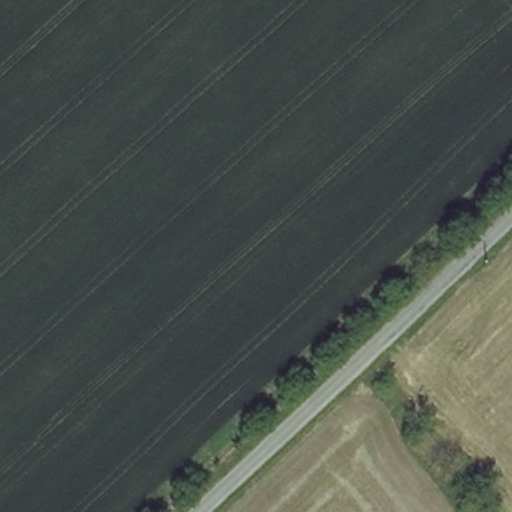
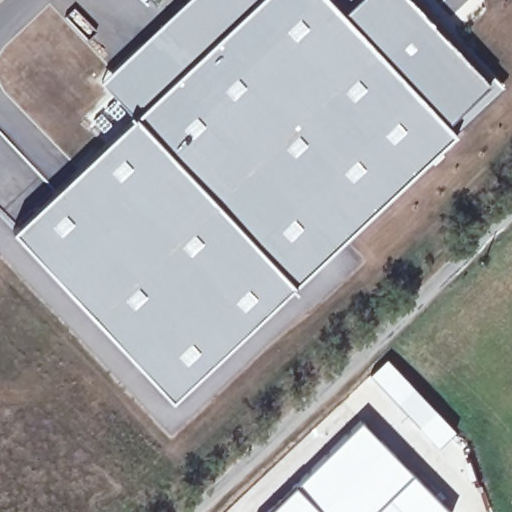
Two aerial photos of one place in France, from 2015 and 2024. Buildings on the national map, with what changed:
new [(155,96),(255,0),(334,0),(344,10),(354,0),(414,0),(442,30),(490,79),(493,75),(504,86),(459,130),(172,399),(13,229),(77,169),(131,116),(155,96)]
new [(133,52),(164,19),(185,0),(255,0),(155,96),(131,116),(102,81),(133,52)]
new [(344,10),(334,0),(354,0),(344,10)]
new [(371,375),(387,359),(456,431),(439,447),(371,375)]
new [(450,512),(267,512),(362,420),(450,512)]

